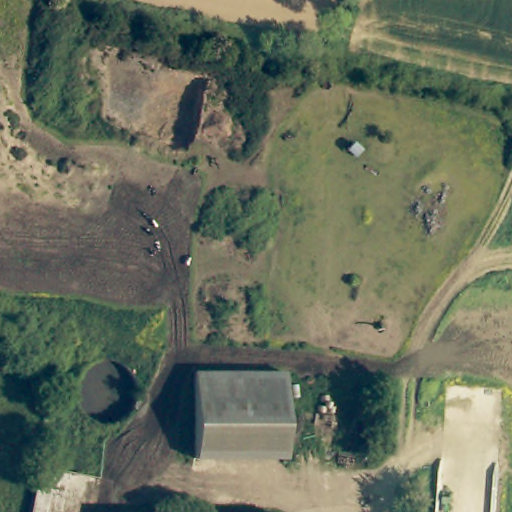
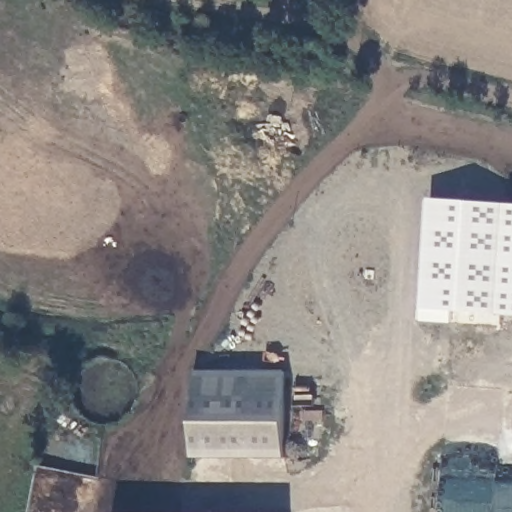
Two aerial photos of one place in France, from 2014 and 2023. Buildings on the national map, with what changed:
new [(449,222),(444,277),(488,280),(486,305),(432,302),(440,194),(469,196),(467,223),(449,222)]
new [(486,305),(488,280),(444,277),(449,222),(467,223),(469,196),(512,198),(512,306),(486,305)]
new [(430,314),(432,302),(461,304),(459,315),(430,314)]
unchanged [(284,375),(284,460),(194,460),(194,375),(284,375)]

